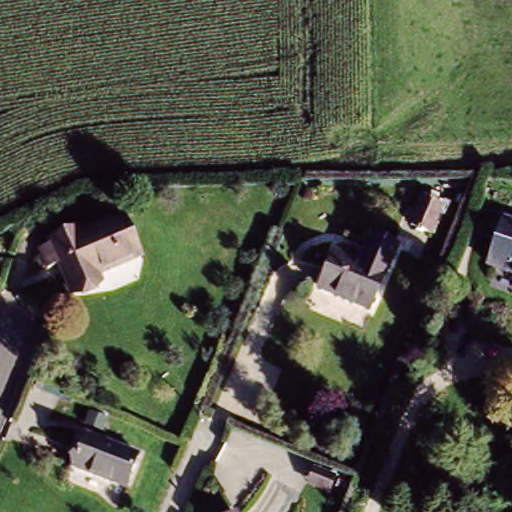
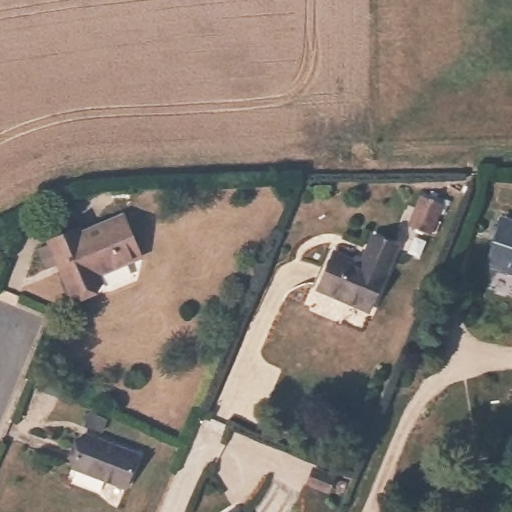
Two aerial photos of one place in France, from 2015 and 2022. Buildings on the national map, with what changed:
unchanged [(422,197),(440,204),(429,233),(410,225),(422,197)]
unchanged [(53,262),(40,267),(32,245),(44,242),(44,239),(74,227),(77,234),(118,215),(133,253),(90,270),(93,278),(73,287),(63,291),(53,262)]
unchanged [(497,220),(512,225),(512,275),(483,267),(497,220)]
unchanged [(326,254),(353,265),(365,237),(388,247),(361,312),(310,290),(326,254)]
unchanged [(80,437),(134,455),(123,489),(68,471),(80,437)]
unchanged [(329,473),(324,486),(304,478),(309,464),(329,473)]
unchanged [(231,509),(233,512),(228,512),(231,509)]

